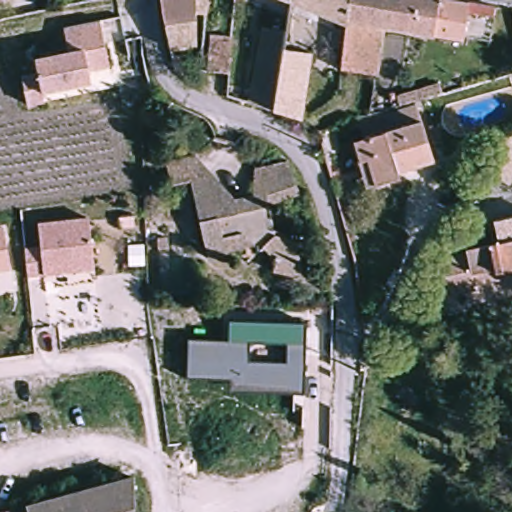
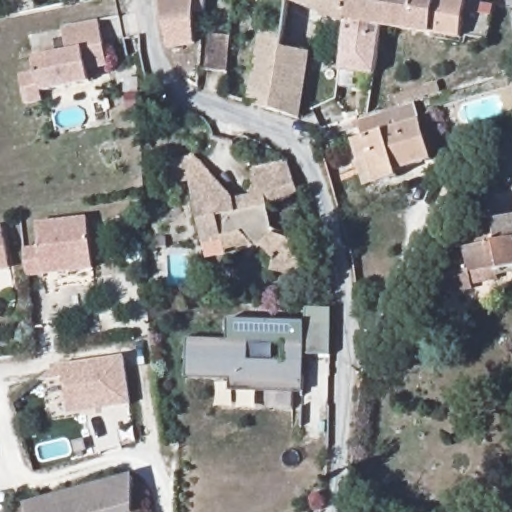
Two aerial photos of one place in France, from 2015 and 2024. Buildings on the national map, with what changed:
unchanged [(194,15),(192,45),(169,41),(161,0),(203,0),(201,15),(194,15)]
unchanged [(343,26),(286,0),(285,0),(287,0),(345,0),(379,0),(459,0),(465,1),(460,35),(383,25),(376,76),(340,72),(343,26)]
unchanged [(103,44),(107,64),(87,69),(90,80),(41,91),(43,100),(26,104),(20,76),(36,73),(33,60),(67,52),(61,26),(82,22),(97,19),(103,44)]
unchanged [(258,19),(283,24),(280,45),(271,106),(245,97),(258,19)]
unchanged [(280,45),(308,51),(299,115),(271,106),(280,45)]
unchanged [(383,129),(382,120),(423,113),(436,154),(396,171),(397,177),(360,182),(350,139),(383,129)]
unchanged [(512,166),(495,184),(479,162),(512,129),(512,166)]
unchanged [(160,157),(191,148),(218,175),(231,193),(253,190),(253,161),(289,155),(296,189),(268,197),(273,227),(295,239),(303,270),(267,267),(270,253),(254,242),(201,251),(185,180),(168,184),(160,157)]
unchanged [(484,277),(459,284),(450,250),(475,242),(474,239),(505,230),(499,208),(512,204),(512,257),(505,259),(507,263),(483,270),(484,277)]
unchanged [(25,270),(23,246),(40,245),(38,221),(90,219),(92,270),(25,273),(25,270)]
unchanged [(14,258),(0,260),(0,226),(10,225),(14,258)]
unchanged [(233,390),(232,377),(189,375),(189,342),(229,341),(230,322),(306,325),(306,343),(303,394),(233,390)]
new [(132,405),(68,414),(64,380),(52,381),(50,367),(125,356),(132,405)]
unchanged [(116,512),(30,512),(28,506),(133,476),(133,507),(116,512)]
unchanged [(28,506),(30,512),(8,512),(28,506)]

